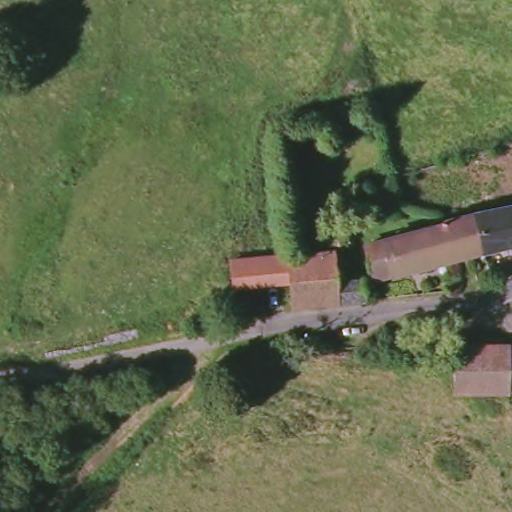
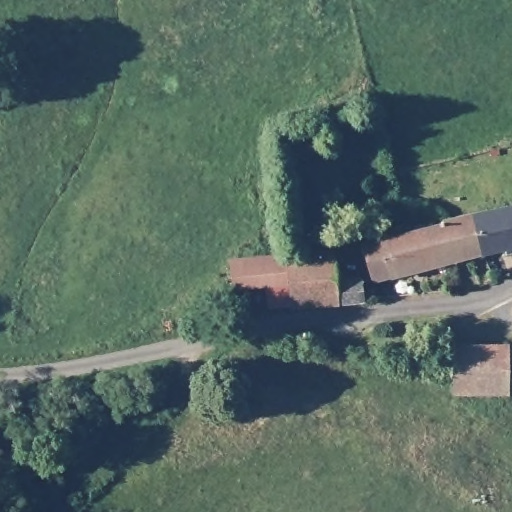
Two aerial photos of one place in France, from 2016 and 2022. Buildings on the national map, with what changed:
unchanged [(472,212),(512,204),(512,241),(482,248),(472,212)]
unchanged [(443,217),(472,212),(482,248),(377,274),(367,241),(402,234),(443,217)]
unchanged [(333,254),(335,284),(357,284),(358,296),(293,305),(292,280),(275,281),(275,255),(333,254)]
unchanged [(235,282),(235,256),(275,255),(275,281),(235,282)]
unchanged [(453,393),(454,345),(508,345),(506,392),(453,393)]

